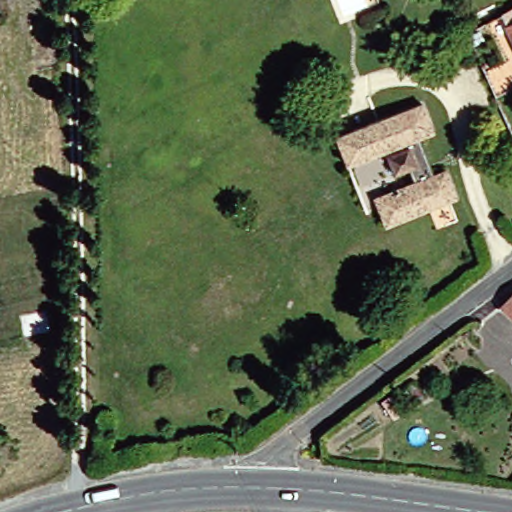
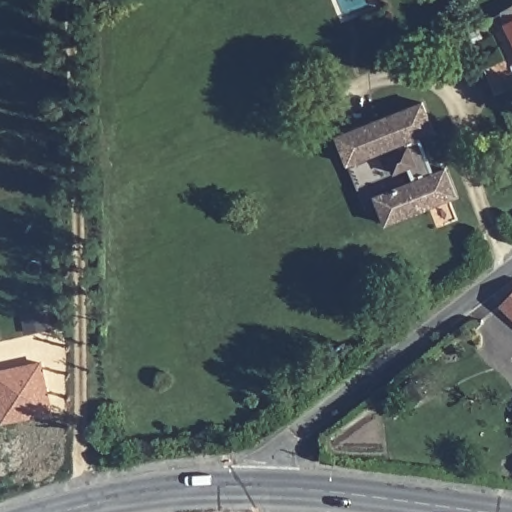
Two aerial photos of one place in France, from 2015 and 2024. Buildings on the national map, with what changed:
unchanged [(503,36),(494,16),(512,7),(512,57),(502,39),(503,36)]
unchanged [(435,174),(447,203),(377,228),(367,199),(417,181),(413,171),(397,176),(395,169),(390,171),(393,178),(376,184),(369,163),(385,156),(389,166),(393,165),(390,155),(405,150),(404,144),(340,167),(329,141),(417,108),(427,136),(411,141),(413,146),(417,146),(424,166),(421,168),(424,178),(435,174)]
unchanged [(512,284),(512,326),(490,306),(512,284)]
new [(53,412),(1,424),(0,419),(0,369),(43,360),(53,412)]

